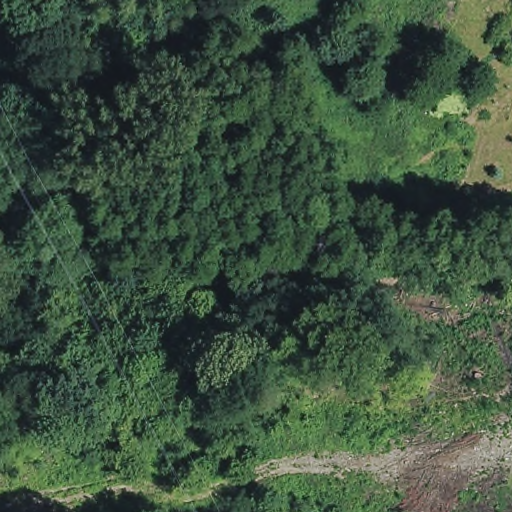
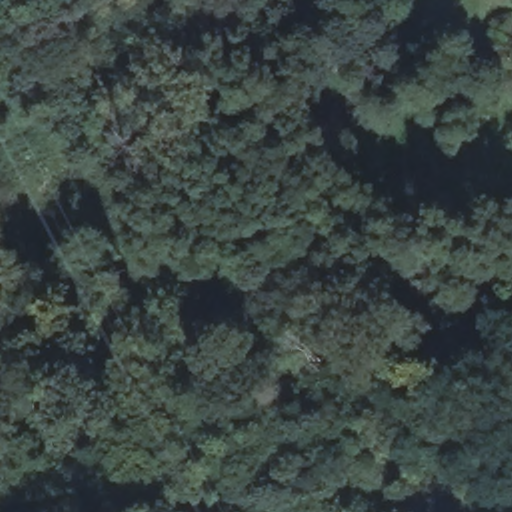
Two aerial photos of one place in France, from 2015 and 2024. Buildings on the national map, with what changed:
[]

